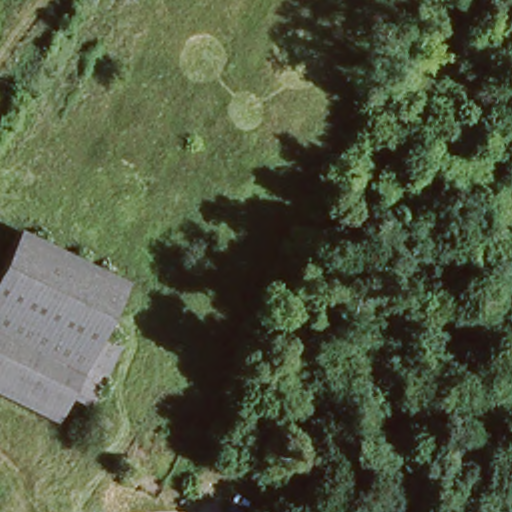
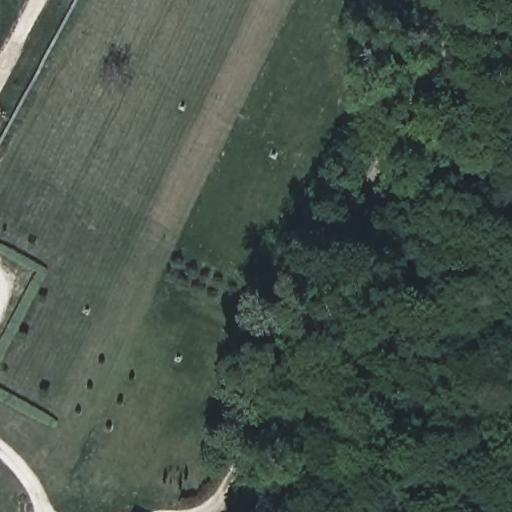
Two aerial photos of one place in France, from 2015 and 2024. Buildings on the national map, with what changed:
demolished [(0,383),(0,259),(15,230),(117,280),(59,411),(0,383)]

